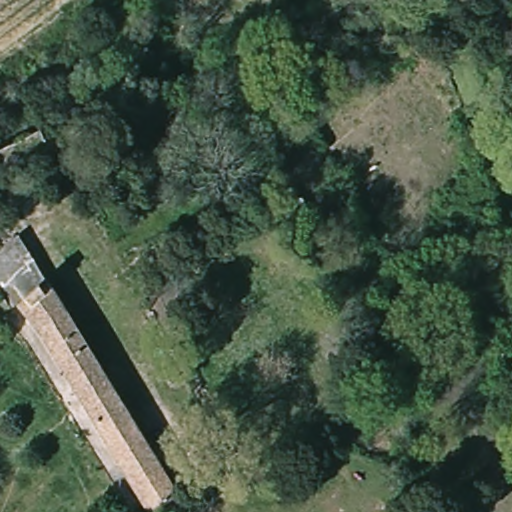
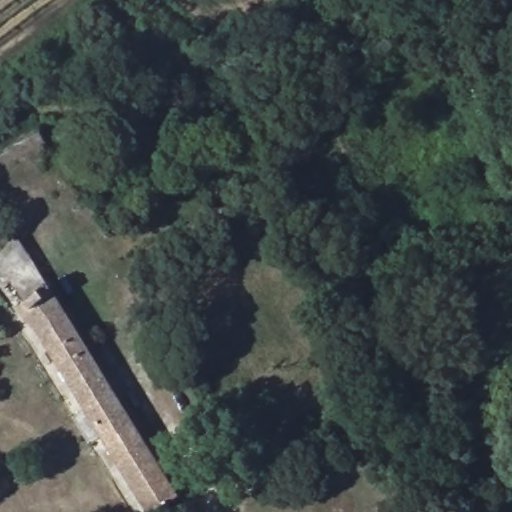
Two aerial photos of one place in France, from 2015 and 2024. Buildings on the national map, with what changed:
unchanged [(321,227),(301,239),(270,199),(292,187),(321,227)]
unchanged [(0,312),(0,262),(27,238),(186,498),(175,506),(171,509),(166,512),(150,512),(27,320),(12,330),(0,312)]

